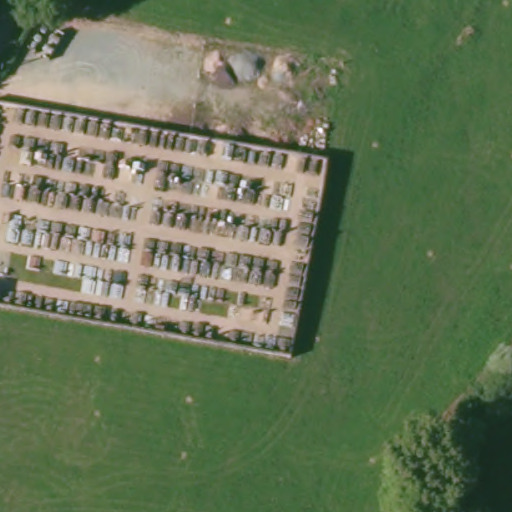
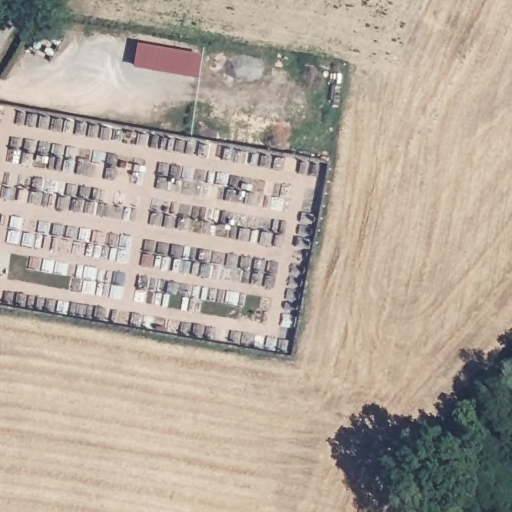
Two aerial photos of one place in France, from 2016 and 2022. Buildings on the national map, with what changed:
new [(197,78),(132,67),(136,43),(200,54),(197,78)]

